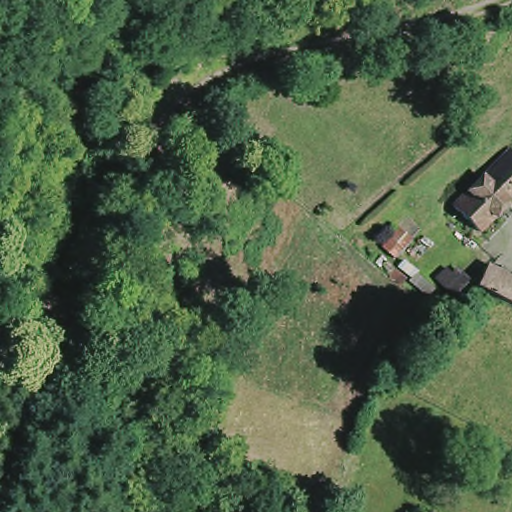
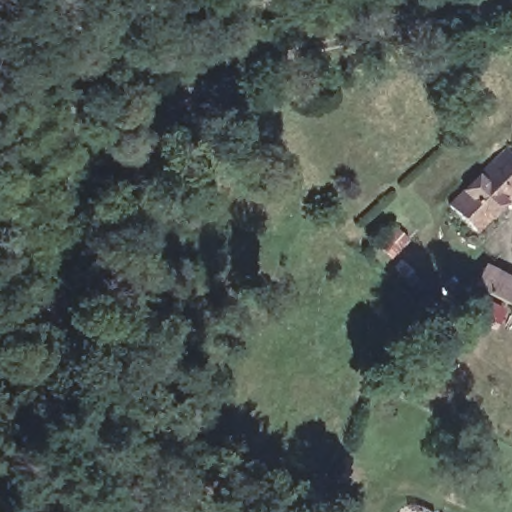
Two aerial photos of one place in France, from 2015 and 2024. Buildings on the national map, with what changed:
unchanged [(446,207),(501,150),(510,159),(512,157),(512,192),(472,233),(446,207)]
unchanged [(475,287),(484,269),(512,283),(512,301),(510,306),(475,287)]

